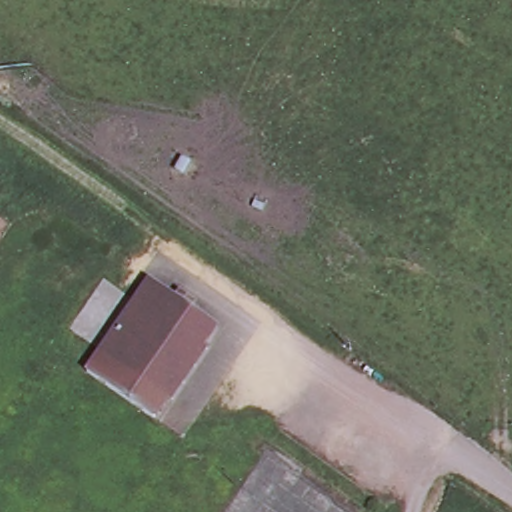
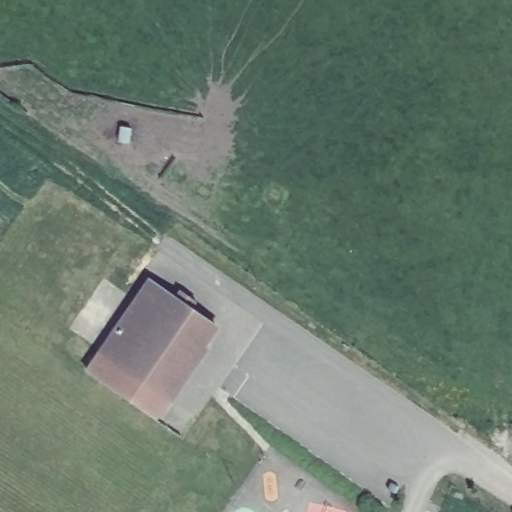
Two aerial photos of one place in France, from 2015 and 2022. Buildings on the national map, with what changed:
unchanged [(157,272),(182,288),(187,281),(203,292),(198,299),(224,317),(176,386),(109,342),(157,272)]
unchanged [(109,342),(176,386),(162,407),(95,362),(109,342)]

